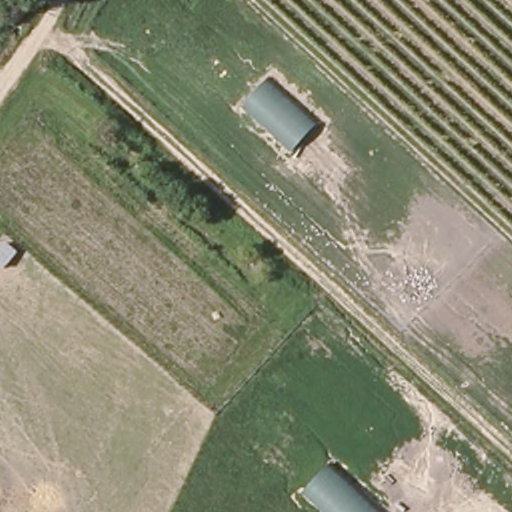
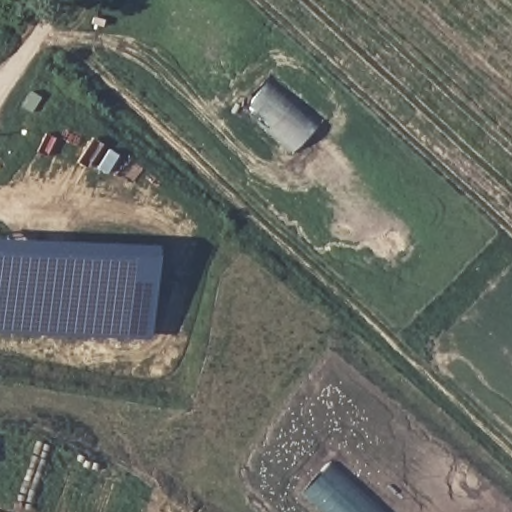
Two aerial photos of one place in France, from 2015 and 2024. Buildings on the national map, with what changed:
unchanged [(290,152),(242,107),(270,79),(317,123),(290,152)]
new [(0,333),(0,236),(155,242),(150,340),(0,333)]
unchanged [(329,465),(379,512),(325,512),(304,492),(329,465)]

